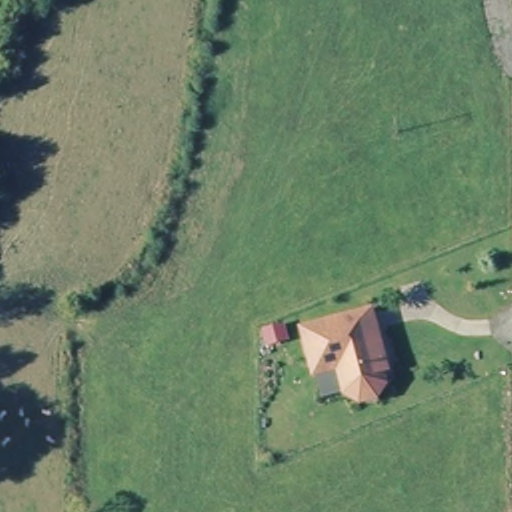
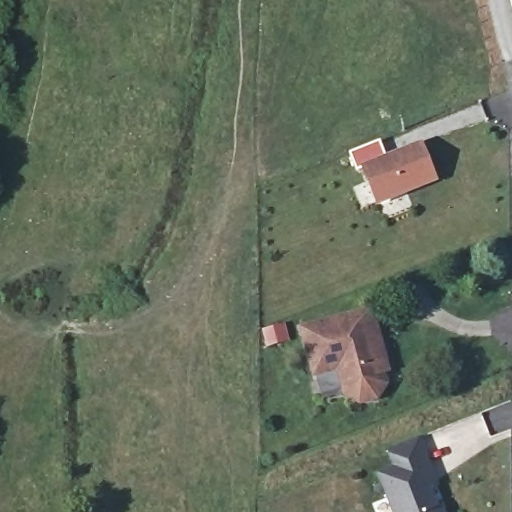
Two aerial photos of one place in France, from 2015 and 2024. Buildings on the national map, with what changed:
new [(422,142),(438,183),(378,207),(363,168),(358,170),(352,153),(379,142),(385,158),(422,142)]
unchanged [(314,364),(305,333),(372,314),(390,373),(384,375),(388,384),(378,399),(364,404),(349,396),(331,401),(324,374),(318,376),(314,364)]
new [(433,441),(445,470),(453,489),(445,492),(453,512),(409,512),(395,479),(411,472),(404,453),(433,441)]

